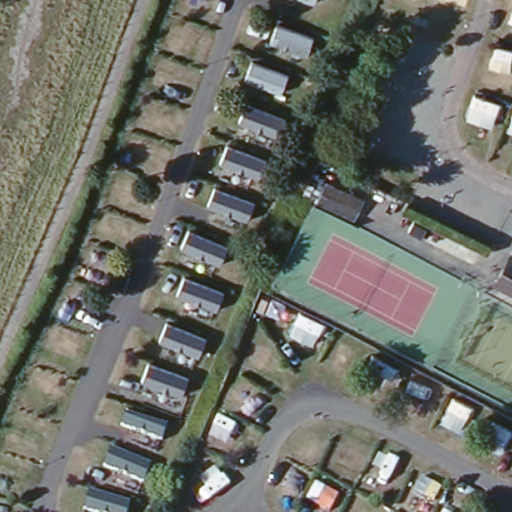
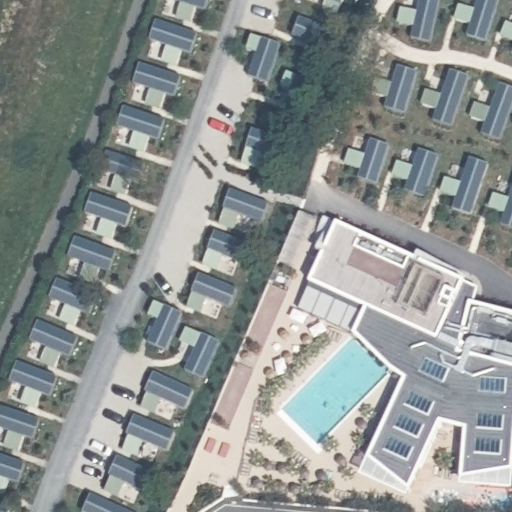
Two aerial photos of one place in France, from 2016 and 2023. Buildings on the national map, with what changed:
demolished [(360,200),(350,219),(315,199),(325,181),(360,200)]
demolished [(425,229),(420,237),(406,230),(410,222),(425,229)]
new [(451,305),(462,313),(467,304),(512,315),(512,469),(459,476),(461,427),(437,423),(408,490),(365,455),(402,379),(388,370),(350,334),(299,308),(336,224),(461,283),(451,305)]
demolished [(512,262),(512,296),(495,287),(499,277),(509,260),(512,262)]

